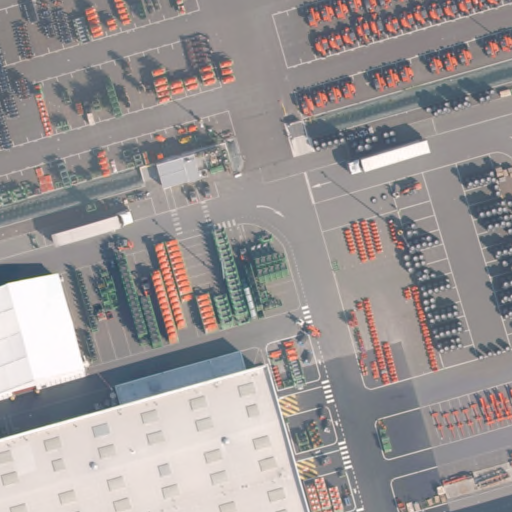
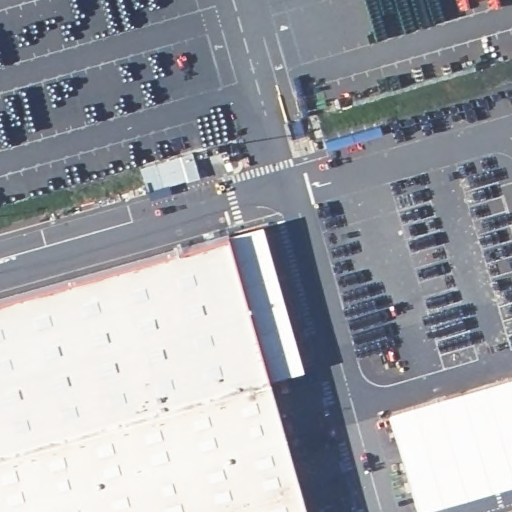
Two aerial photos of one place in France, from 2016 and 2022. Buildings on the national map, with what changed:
new [(192,151),(199,176),(187,179),(187,178),(148,190),(140,165),(192,151)]
new [(237,356),(111,391),(119,417),(0,451),(0,295),(226,231),(264,376),(244,382),(237,356)]
unchanged [(111,391),(237,356),(244,382),(264,376),(303,512),(0,512),(0,451),(119,417),(111,391)]
new [(387,411),(512,376),(512,484),(418,512),(387,411)]

